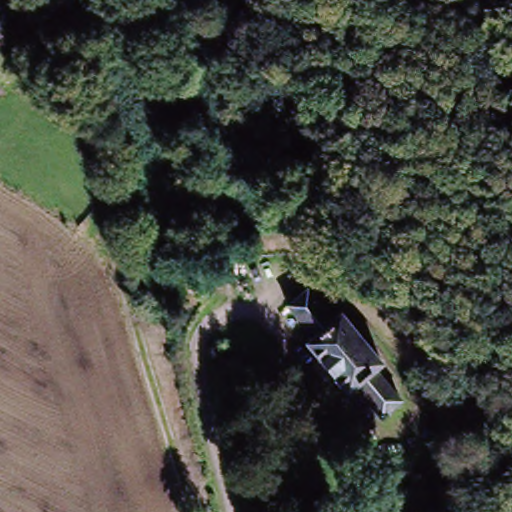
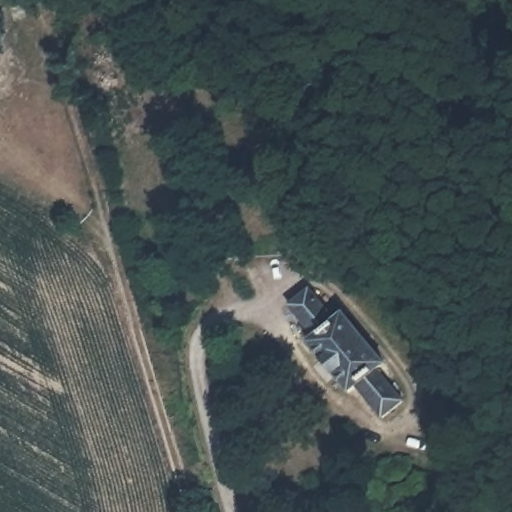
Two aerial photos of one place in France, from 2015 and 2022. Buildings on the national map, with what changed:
unchanged [(381,415),(356,384),(347,391),(306,341),(315,334),(289,303),(309,287),(334,318),(343,311),(384,361),(376,368),(401,399),(381,415)]

